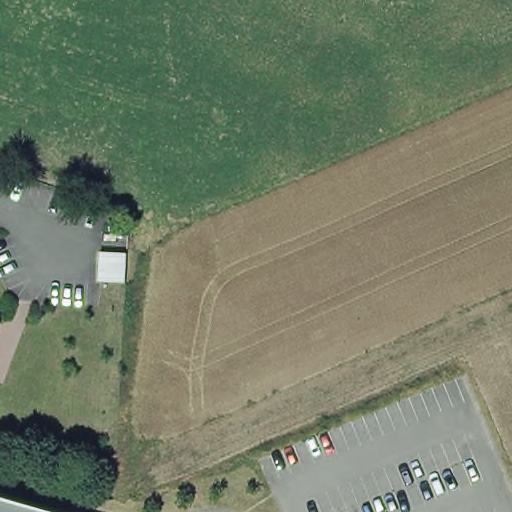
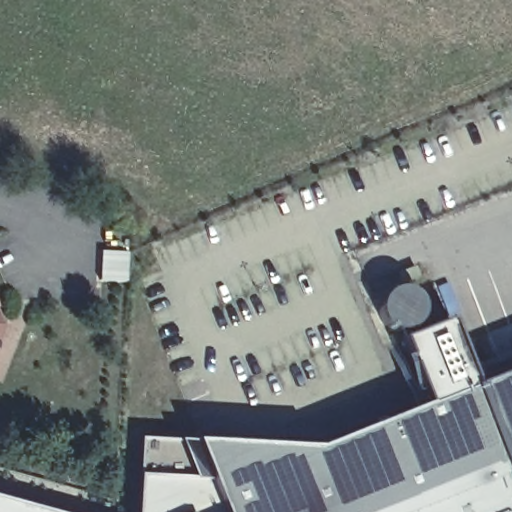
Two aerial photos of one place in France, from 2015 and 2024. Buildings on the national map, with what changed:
unchanged [(125,279),(99,277),(100,248),(126,249),(125,279)]
new [(412,265),(416,275),(399,283),(395,272),(412,265)]
new [(140,437),(323,445),(436,402),(409,337),(457,318),(484,383),(512,372),(512,512),(139,512),(140,437)]
unchanged [(0,333),(0,319),(3,325),(0,333)]
demolished [(0,497),(53,512),(0,512),(0,497)]
new [(0,498),(48,512),(0,512),(0,498)]

